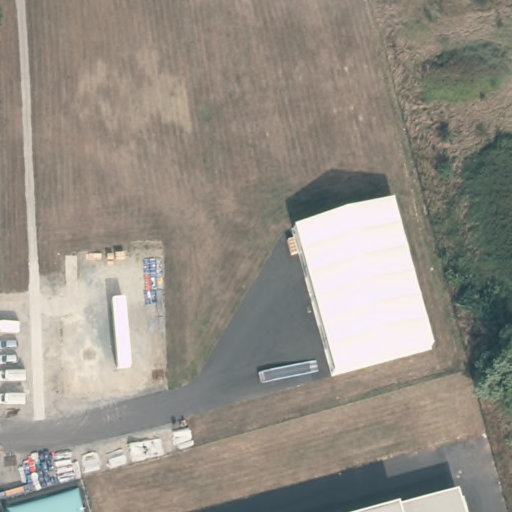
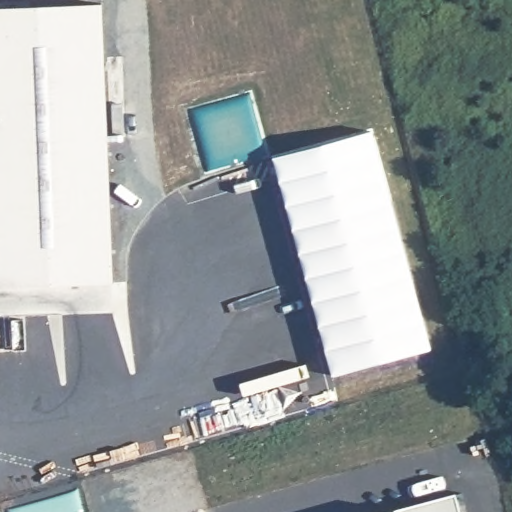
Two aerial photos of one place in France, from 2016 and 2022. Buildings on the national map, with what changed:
new [(103,3),(113,284),(0,287),(0,7),(103,3)]
new [(291,229),(271,156),(372,129),(390,202),(291,229)]
unchanged [(291,229),(390,202),(429,348),(332,376),(291,229)]
demolished [(163,241),(167,393),(64,395),(61,244),(163,241)]
unchanged [(459,512),(387,512),(454,494),(459,512)]

